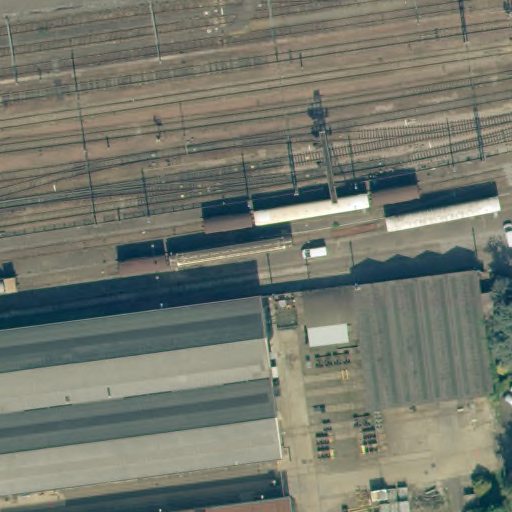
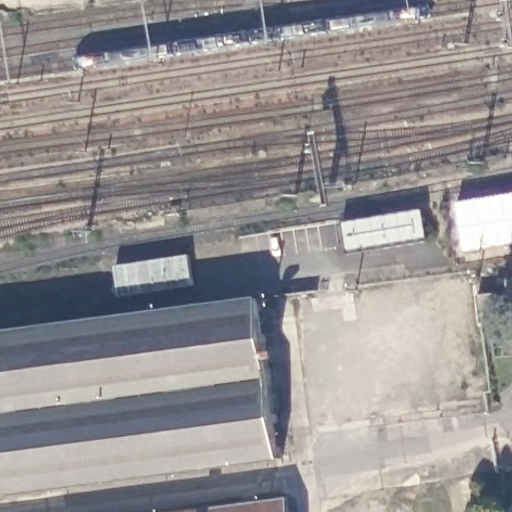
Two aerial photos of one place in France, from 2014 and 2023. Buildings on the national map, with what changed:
new [(467,254),(459,202),(512,194),(512,246),(467,254)]
demolished [(464,271),(466,292),(487,290),(490,318),(470,321),(479,396),(362,410),(351,320),(347,285),(464,271)]
unchanged [(265,297),(286,457),(285,458),(0,497),(0,330),(265,293),(265,297)]
unchanged [(294,512),(147,512),(291,493),(294,512)]

